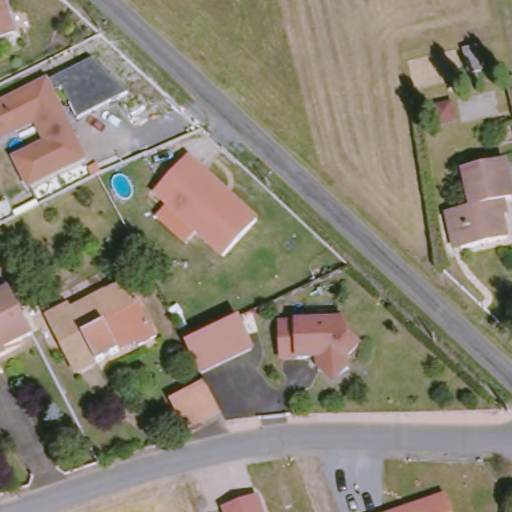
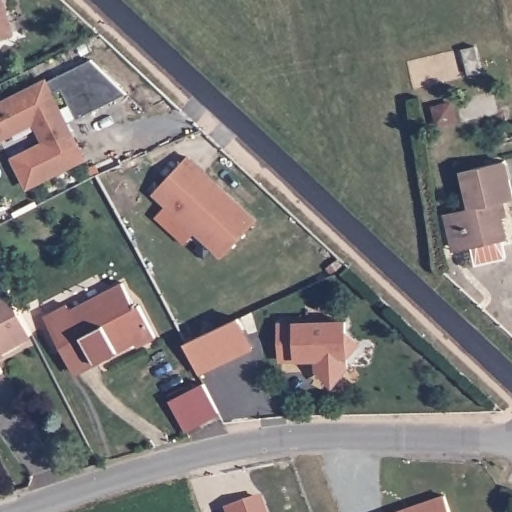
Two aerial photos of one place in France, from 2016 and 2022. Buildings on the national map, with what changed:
unchanged [(468,45),(471,67),(459,69),(456,47),(468,45)]
unchanged [(126,89),(75,114),(62,87),(51,93),(84,158),(29,185),(16,159),(48,143),(36,120),(7,135),(3,126),(0,128),(0,105),(93,58),(126,89)]
unchanged [(448,101),(450,116),(436,119),(433,104),(448,101)]
unchanged [(211,251),(143,186),(176,150),(196,169),(218,190),(245,215),(211,251)]
unchanged [(508,160),(512,179),(512,196),(504,198),(512,237),(466,248),(458,209),(475,206),(468,168),(508,160)]
unchanged [(121,345),(121,352),(102,361),(89,340),(71,349),(53,313),(71,304),(76,314),(109,296),(109,291),(124,283),(139,308),(144,305),(160,336),(144,345),(139,336),(121,345)]
unchanged [(19,297),(37,331),(25,338),(28,345),(0,359),(0,296),(14,289),(19,297)]
unchanged [(199,372),(184,342),(239,316),(254,346),(199,372)]
unchanged [(277,325),(343,323),(344,334),(356,346),(344,358),(345,371),(331,380),(316,372),(315,359),(278,361),(277,325)]
unchanged [(0,360),(8,377),(0,380),(0,360)]
unchanged [(206,385),(217,410),(185,425),(171,398),(203,381),(206,385)]
unchanged [(263,512),(224,512),(223,509),(258,496),(263,512)]
unchanged [(412,509),(444,497),(450,512),(404,512),(412,509)]

